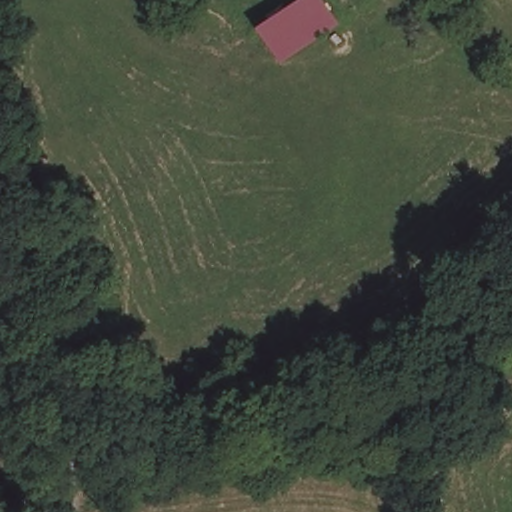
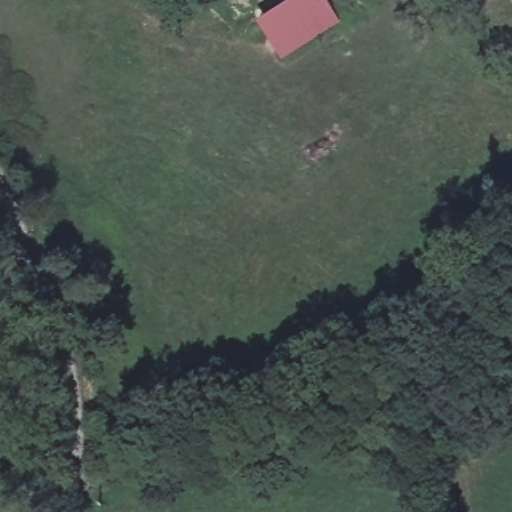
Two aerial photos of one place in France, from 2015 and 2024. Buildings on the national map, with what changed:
unchanged [(302,0),(323,0),(336,19),(283,55),(264,25),(302,0)]
unchanged [(372,450),(398,447),(400,457),(393,458),(371,458),(372,450)]

